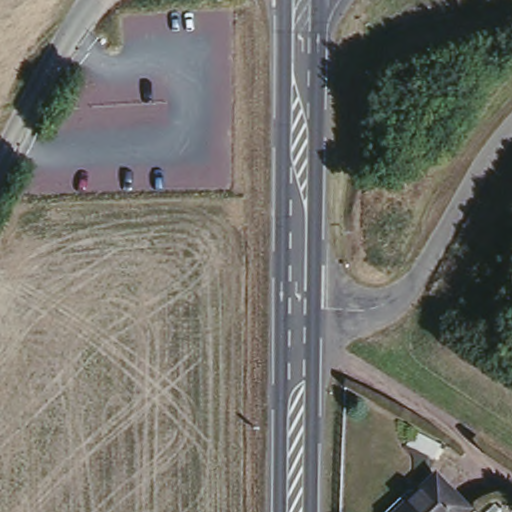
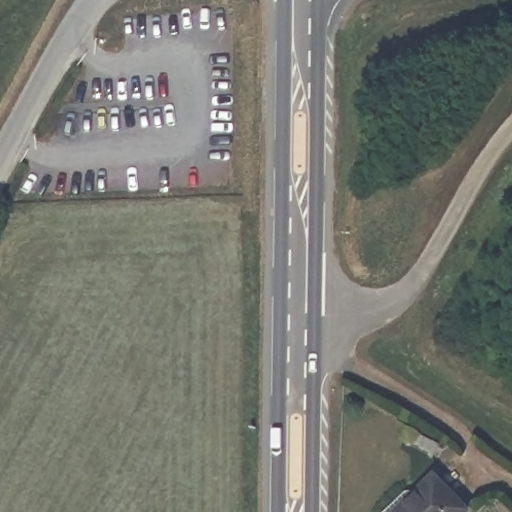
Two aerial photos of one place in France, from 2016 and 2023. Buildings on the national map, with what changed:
unchanged [(415,431),(442,445),(434,458),(409,445),(415,431)]
unchanged [(408,490),(414,488),(417,491),(438,471),(470,505),(463,512),(386,512),(386,511),(408,490)]

